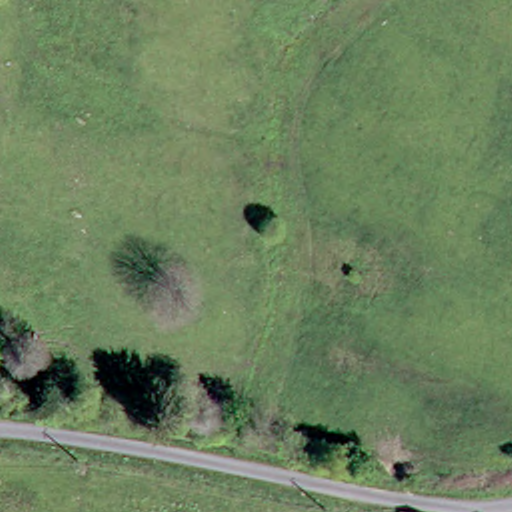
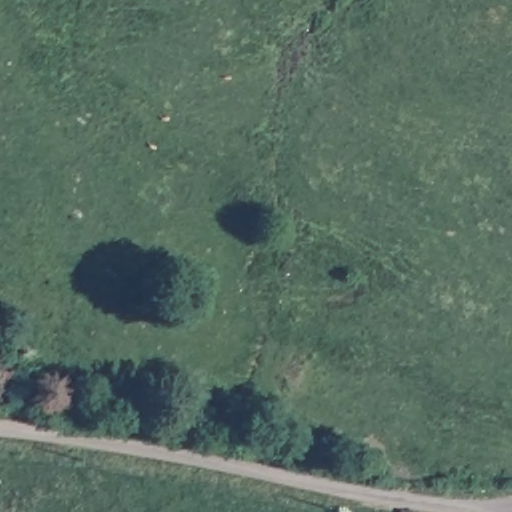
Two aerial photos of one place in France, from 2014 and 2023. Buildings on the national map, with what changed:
unchanged [(429,512),(400,512),(402,503),(429,510),(429,512)]

